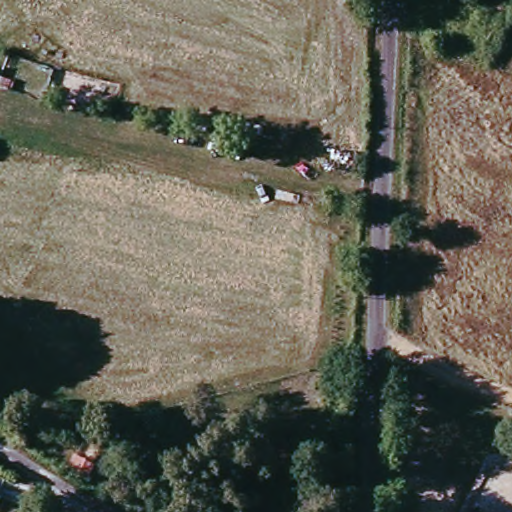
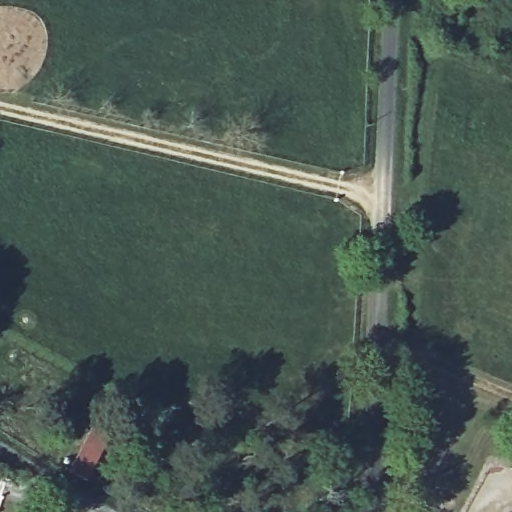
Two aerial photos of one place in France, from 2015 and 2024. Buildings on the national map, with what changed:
unchanged [(75,444),(94,454),(85,472),(65,462),(75,444)]

